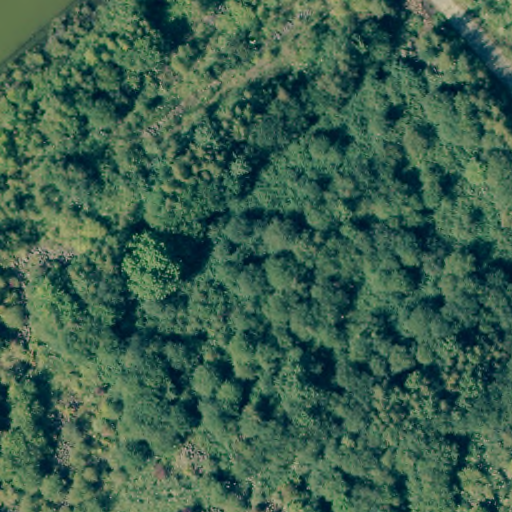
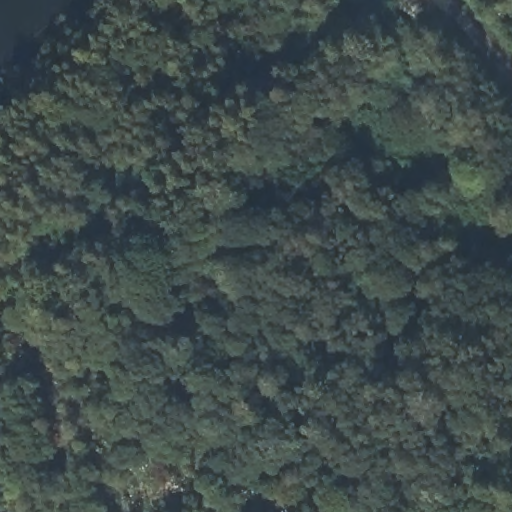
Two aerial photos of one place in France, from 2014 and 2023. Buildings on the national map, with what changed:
[]

